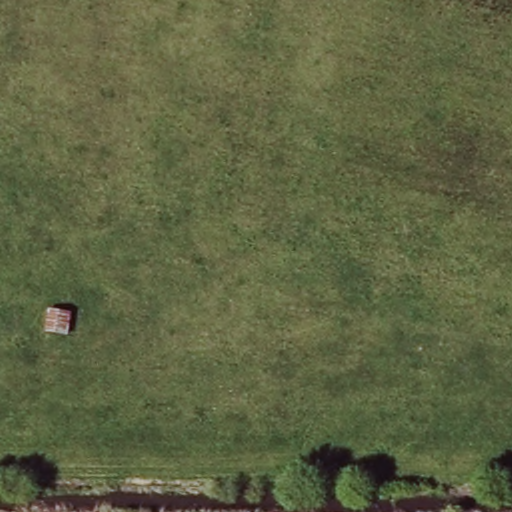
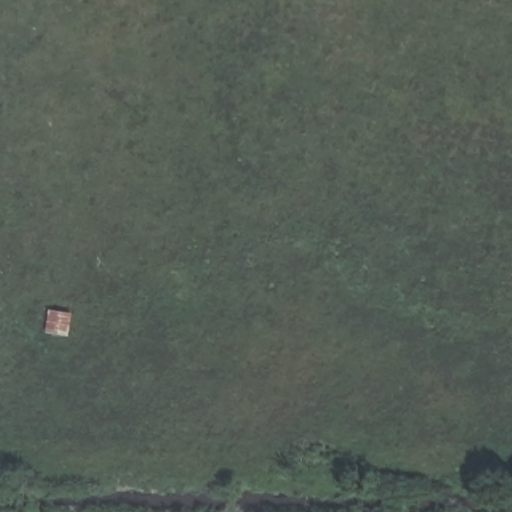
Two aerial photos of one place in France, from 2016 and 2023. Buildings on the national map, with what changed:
unchanged [(50,310),(69,313),(66,334),(47,332),(50,310)]

